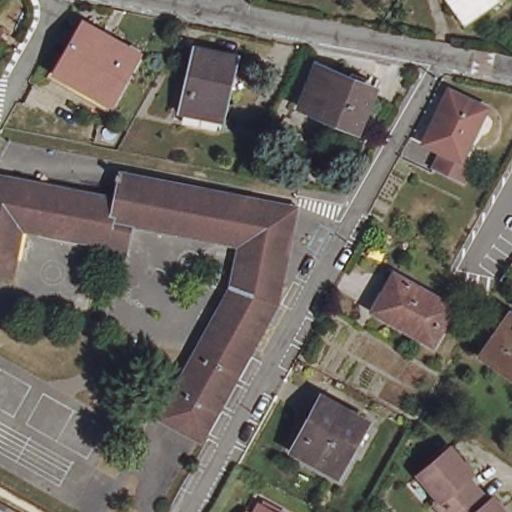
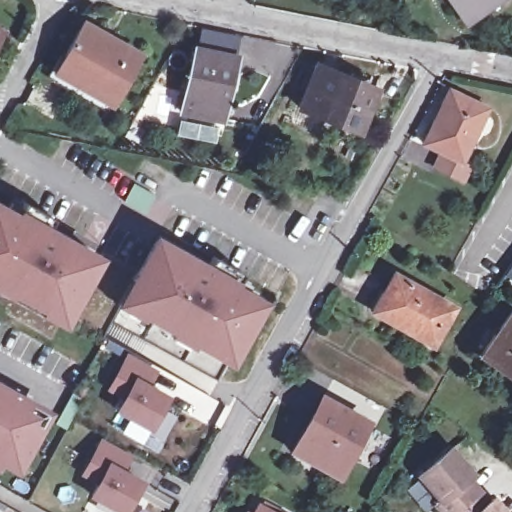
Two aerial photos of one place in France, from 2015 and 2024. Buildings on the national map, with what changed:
unchanged [(467,25),(450,0),(504,0),(467,25)]
unchanged [(144,56),(117,103),(60,69),(86,22),(144,56)]
unchanged [(0,36),(0,29),(3,31),(0,36)]
unchanged [(240,56),(227,119),(187,109),(200,46),(240,56)]
unchanged [(377,87),(360,127),(305,101),(322,62),(377,87)]
unchanged [(490,105),(464,159),(472,162),(464,179),(436,165),(443,149),(427,140),(454,86),(490,105)]
demolished [(233,292),(242,253),(132,229),(125,260),(105,255),(105,247),(22,229),(12,275),(0,272),(0,173),(117,199),(122,175),(295,214),(290,246),(279,305),(202,443),(163,421),(233,292)]
new [(156,197),(146,215),(125,202),(135,185),(156,197)]
new [(23,203),(50,218),(46,225),(105,257),(66,330),(38,315),(42,310),(12,294),(10,299),(0,294),(0,201),(19,211),(23,203)]
new [(153,234),(207,263),(212,257),(240,272),(233,281),(267,300),(232,366),(195,346),(193,348),(170,337),(172,332),(143,317),(142,320),(115,305),(153,234)]
new [(512,268),(512,285),(504,280),(512,268)]
unchanged [(434,340),(373,306),(385,287),(394,271),(408,278),(454,304),(434,340)]
unchanged [(479,359),(510,316),(512,317),(512,382),(479,359)]
new [(159,370),(149,383),(170,397),(152,431),(113,411),(120,401),(104,391),(126,353),(159,370)]
new [(17,473),(0,465),(0,382),(52,411),(17,473)]
new [(83,400),(67,430),(57,425),(73,394),(83,400)]
unchanged [(370,422),(340,474),(297,451),(327,398),(370,422)]
new [(123,470),(145,481),(128,512),(117,512),(87,497),(93,486),(77,476),(97,437),(132,456),(123,470)]
unchanged [(442,508),(440,510),(430,497),(435,493),(414,466),(448,442),(470,469),(465,473),(473,484),(442,508)]
unchanged [(487,492),(502,512),(442,512),(440,510),(442,508),(473,484),(483,495),(487,492)]
unchanged [(278,512),(257,512),(262,503),(278,512)]
unchanged [(254,512),(250,512),(250,511),(254,512)]

